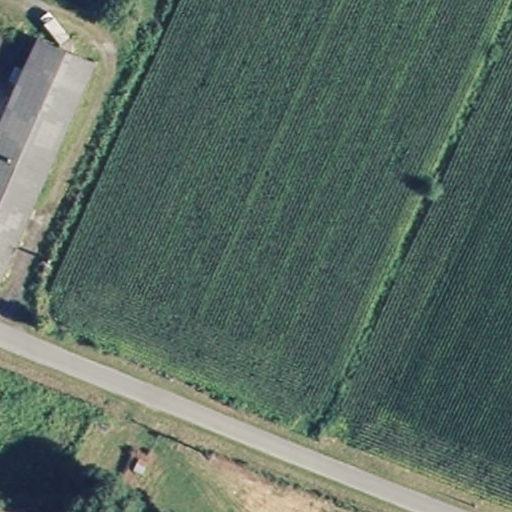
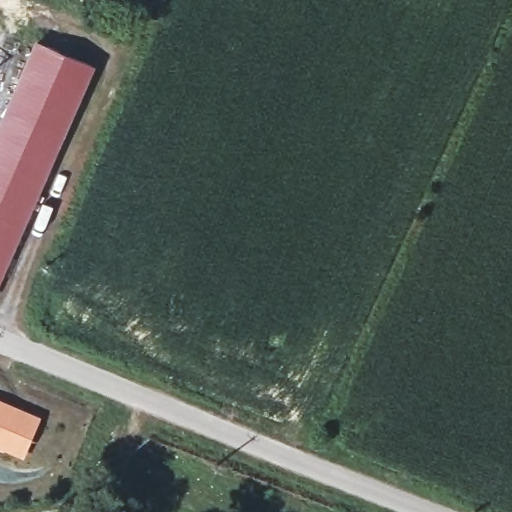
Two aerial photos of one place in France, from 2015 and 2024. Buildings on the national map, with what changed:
unchanged [(87,68),(0,256),(0,146),(45,49),(87,68)]
new [(43,416),(25,459),(0,448),(0,398),(43,416)]

